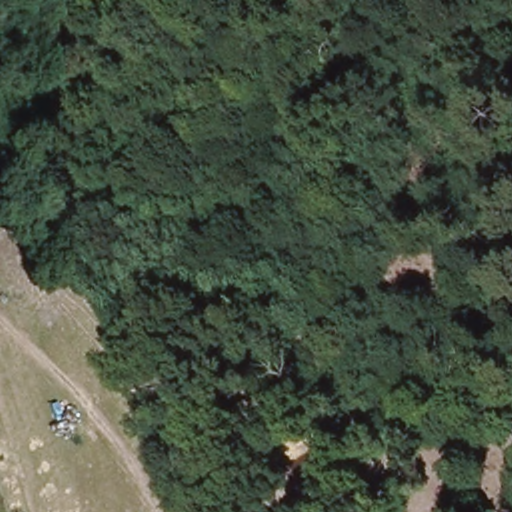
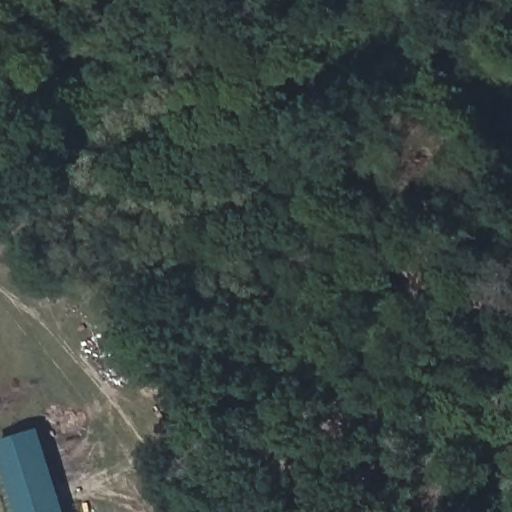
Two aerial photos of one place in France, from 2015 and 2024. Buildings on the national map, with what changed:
new [(70,512),(20,512),(0,446),(0,442),(44,428),(70,512)]

